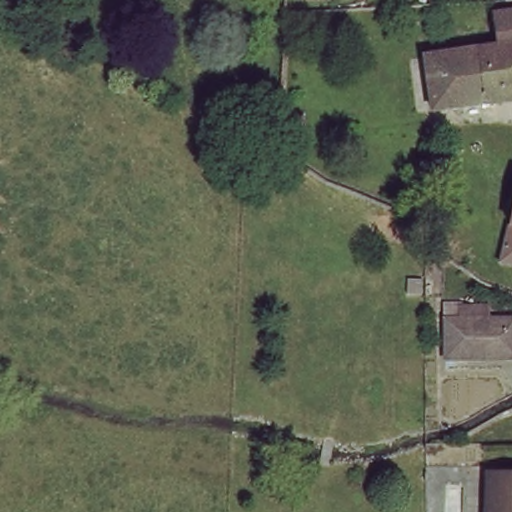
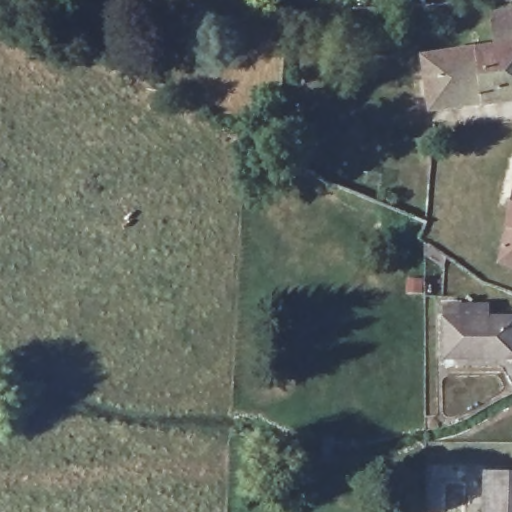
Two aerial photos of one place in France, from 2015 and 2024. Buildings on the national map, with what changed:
unchanged [(470,42),(470,35),(482,34),(483,40),(493,38),(496,35),(493,9),(512,6),(512,103),(488,107),(437,115),(427,50),(470,42)]
unchanged [(512,243),(512,263),(508,261),(512,243)]
unchanged [(461,304),(463,321),(512,318),(512,356),(448,361),(443,305),(461,304)]
unchanged [(484,471),(512,471),(512,512),(485,512),(484,471)]

